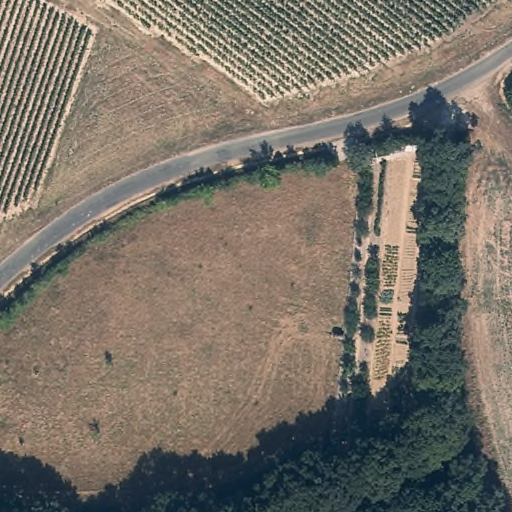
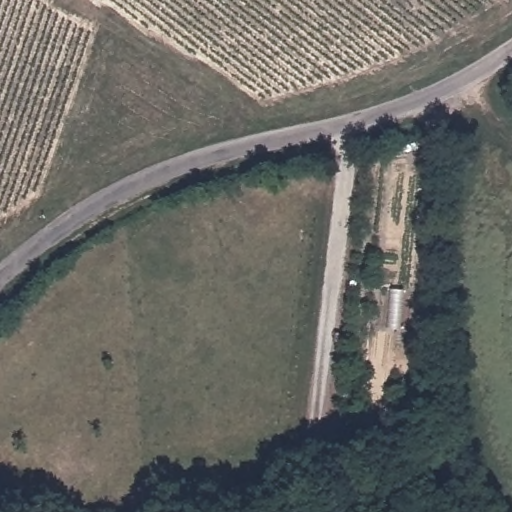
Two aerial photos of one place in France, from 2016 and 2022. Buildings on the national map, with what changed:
[]

